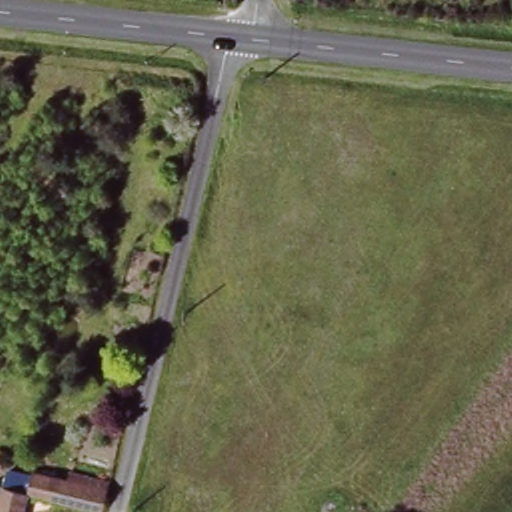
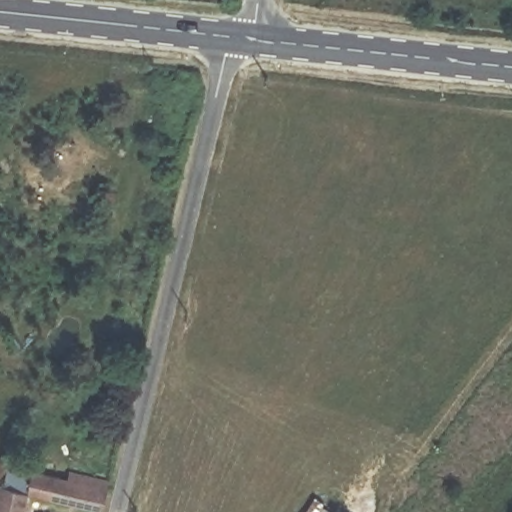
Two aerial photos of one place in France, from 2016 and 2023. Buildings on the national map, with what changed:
unchanged [(28,483),(34,459),(70,470),(74,462),(110,471),(100,507),(31,492),(27,512),(0,512),(0,476),(28,483)]

